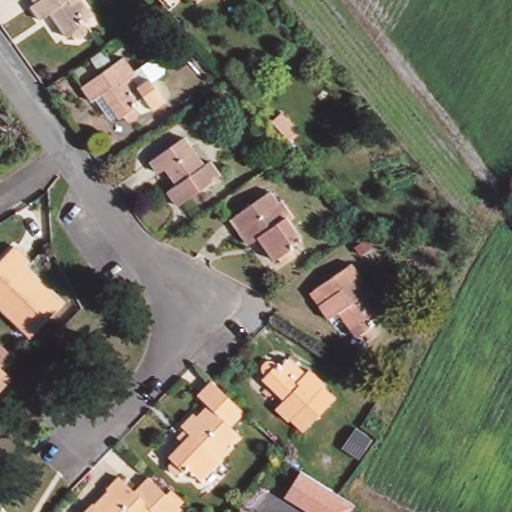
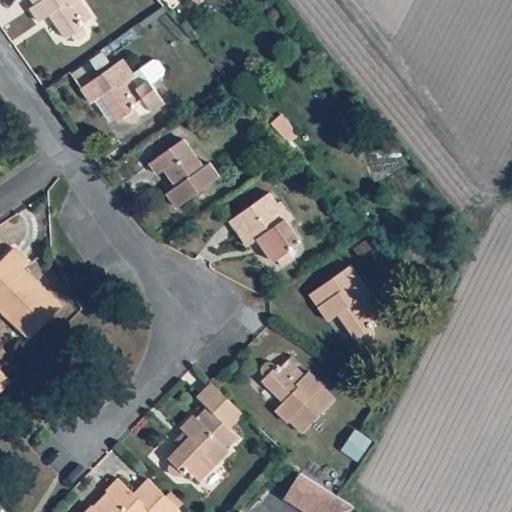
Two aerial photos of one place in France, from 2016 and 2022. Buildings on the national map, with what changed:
unchanged [(82,20),(84,23),(84,26),(84,29),(84,31),(81,33),(78,34),(75,34),(71,34),(69,31),(68,30),(63,34),(46,10),(36,17),(26,3),(30,0),(83,0),(92,12),(82,20)]
unchanged [(186,0),(193,0),(189,4),(186,0)]
unchanged [(162,104),(149,114),(142,105),(132,111),(134,114),(134,116),(134,120),(133,122),(131,123),(128,124),(124,124),(122,123),(120,120),(116,123),(97,96),(88,104),(77,89),(121,57),(135,76),(128,81),(134,89),(146,81),(162,104)]
unchanged [(253,99),(239,84),(249,75),(263,90),(253,99)]
unchanged [(176,205),(165,190),(175,184),(164,169),(157,174),(147,161),(181,137),(201,165),(207,161),(218,176),(176,205)]
unchanged [(281,226),(293,243),(284,249),(286,253),(282,256),(287,262),(275,270),(270,263),(267,266),(252,245),(241,253),(232,239),(222,225),(227,221),(262,197),(270,209),(274,206),(286,223),(281,226)]
unchanged [(0,318),(0,256),(6,250),(21,264),(16,269),(55,307),(28,335),(23,341),(0,318)]
unchanged [(369,302),(382,320),(374,325),(377,329),(373,332),(374,333),(375,336),(375,339),(374,340),(372,342),(369,342),(366,341),(364,340),(363,338),(358,341),(340,315),(331,322),(321,308),(311,294),(316,291),(352,266),(375,298),(369,302)]
unchanged [(5,359),(0,364),(0,354),(5,359)]
unchanged [(317,387),(330,398),(302,434),(290,424),(288,426),(274,415),(280,406),(255,387),(262,379),(259,377),(258,374),(258,371),(261,366),(264,365),(268,366),(271,369),(274,366),(277,369),(282,362),(302,378),(305,374),(319,385),(317,387)]
unchanged [(8,379),(0,388),(0,370),(8,379)]
unchanged [(216,390),(223,396),(231,403),(237,409),(238,410),(241,413),(228,427),(237,436),(226,447),(228,450),(199,481),(187,469),(183,474),(181,472),(180,474),(179,474),(179,475),(178,475),(178,476),(177,476),(176,476),(175,476),(174,476),(173,476),(172,476),(171,476),(171,475),(170,475),(169,475),(169,474),(168,474),(168,473),(167,473),(167,472),(167,471),(166,471),(166,470),(166,469),(166,468),(166,467),(166,466),(166,465),(166,464),(167,464),(167,463),(169,461),(165,458),(186,437),(175,427),(189,412),(195,418),(206,406),(196,396),(209,383),(216,390)]
unchanged [(353,509),(350,512),(307,512),(295,506),(283,498),(297,474),(302,477),(310,482),(336,498),(353,509)]
unchanged [(153,512),(85,512),(94,502),(96,504),(107,491),(106,490),(118,477),(133,492),(146,478),(179,509),(177,512),(156,512),(154,511),(153,512)]
unchanged [(237,509),(240,512),(234,512),(237,509)]

